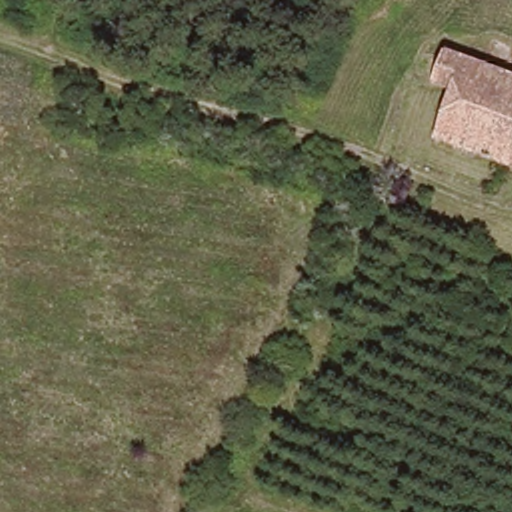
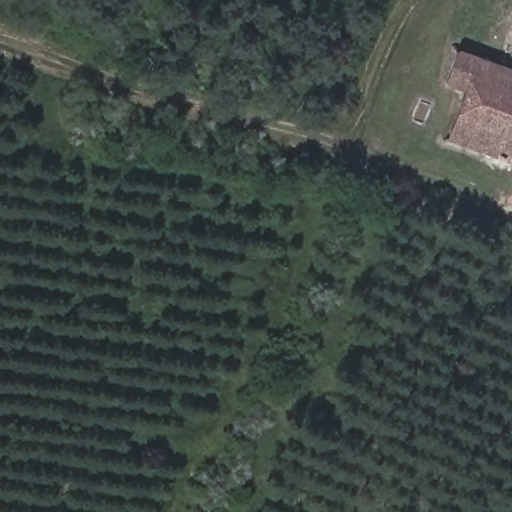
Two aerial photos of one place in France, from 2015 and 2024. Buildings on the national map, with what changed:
unchanged [(512,164),(441,141),(460,95),(438,85),(453,48),(512,72),(512,164)]

